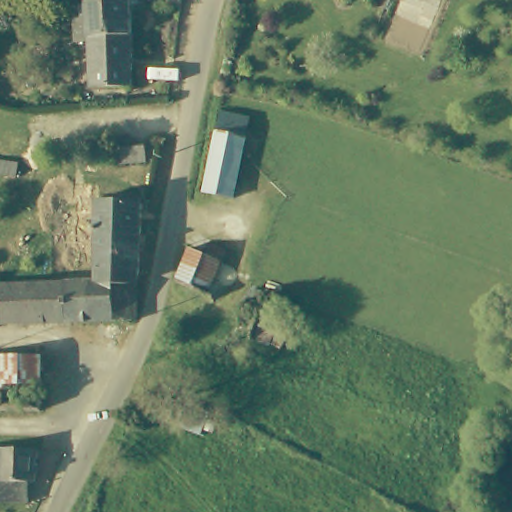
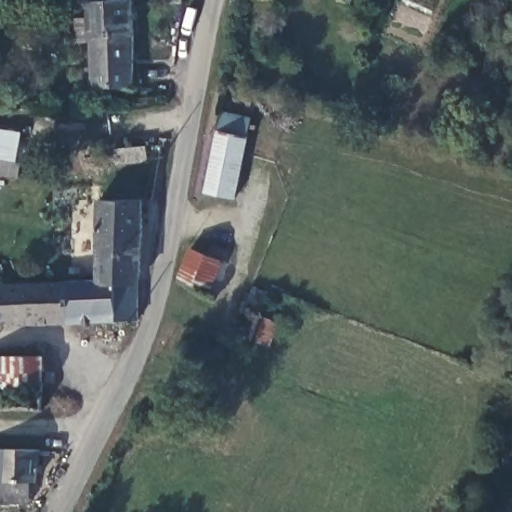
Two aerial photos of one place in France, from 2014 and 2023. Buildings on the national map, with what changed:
unchanged [(96,87),(94,42),(93,38),(79,40),(78,14),(93,12),(92,0),(134,0),(138,83),(96,87)]
unchanged [(162,5),(162,0),(186,0),(186,4),(162,5)]
new [(17,160),(0,157),(0,130),(21,133),(17,160)]
unchanged [(251,139),(239,200),(208,194),(220,132),(251,139)]
unchanged [(151,163),(119,166),(117,151),(149,147),(151,163)]
unchanged [(101,211),(101,195),(143,195),(143,225),(100,225),(101,211)]
unchanged [(116,275),(98,276),(100,229),(100,225),(143,225),(142,277),(140,317),(131,317),(117,319),(116,275)]
unchanged [(224,261),(221,268),(212,293),(180,281),(191,251),(224,261)]
unchanged [(72,278),(98,276),(116,275),(117,319),(72,320),(72,278)]
unchanged [(72,278),(72,320),(0,323),(0,289),(0,282),(72,278)]
unchanged [(51,386),(0,384),(0,353),(12,353),(51,352),(50,381),(51,386)]
unchanged [(34,482),(35,503),(0,504),(0,453),(4,452),(40,451),(41,482),(34,482)]

